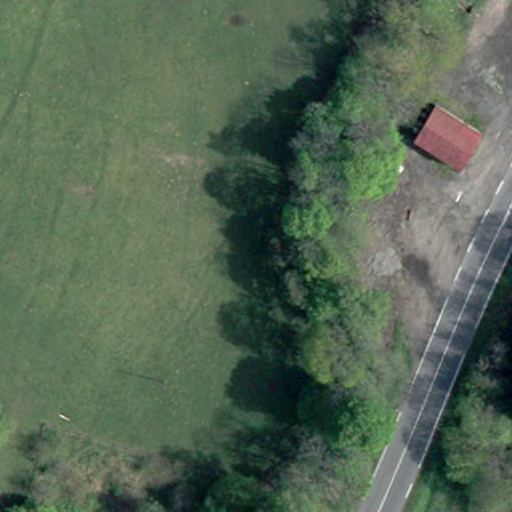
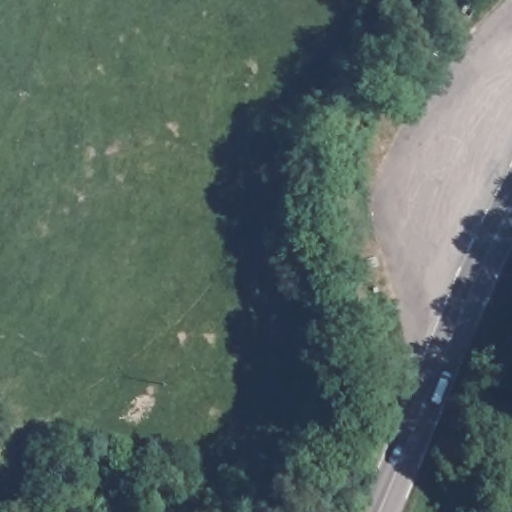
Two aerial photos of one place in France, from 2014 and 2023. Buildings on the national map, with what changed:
demolished [(477,131),(457,165),(412,138),(432,104),(477,131)]

